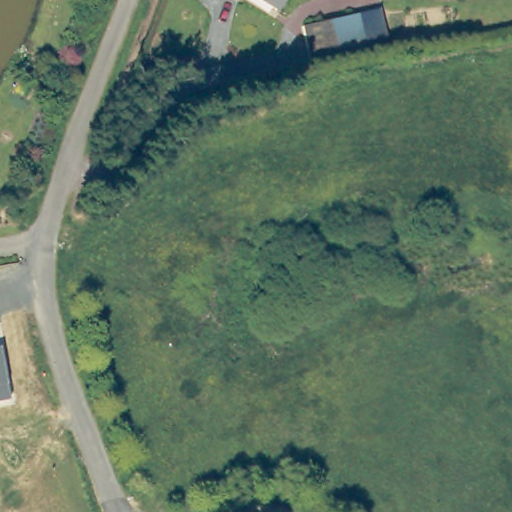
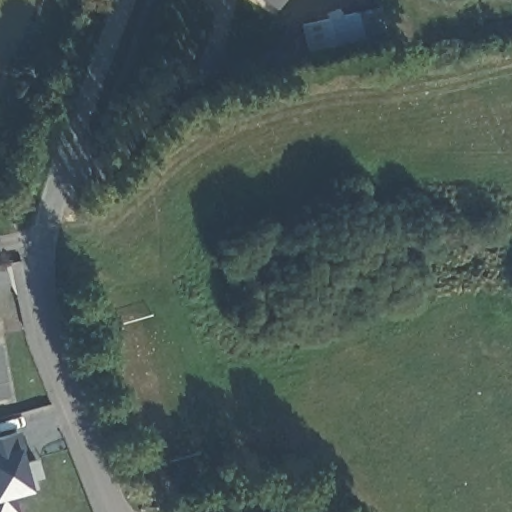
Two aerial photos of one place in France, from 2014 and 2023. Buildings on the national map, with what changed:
unchanged [(272,0),(283,0),(280,5),(272,0)]
unchanged [(357,10),(365,45),(313,56),(305,21),(357,10)]
unchanged [(0,400),(0,352),(7,399),(0,400)]
new [(18,432),(25,463),(36,458),(42,479),(34,481),(36,491),(16,498),(19,512),(0,512),(0,437),(18,432)]

